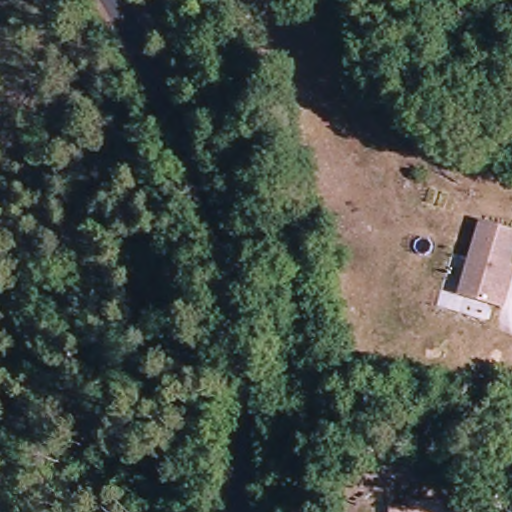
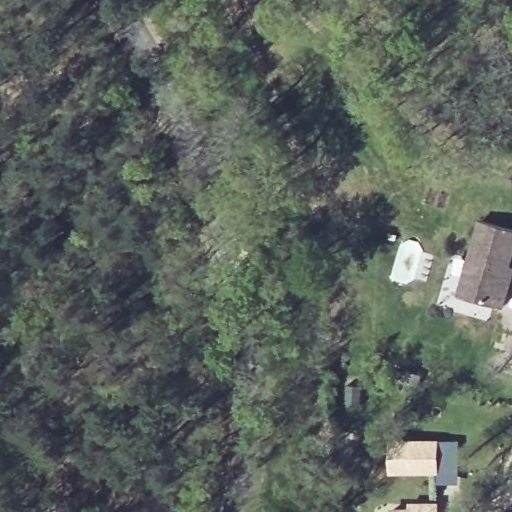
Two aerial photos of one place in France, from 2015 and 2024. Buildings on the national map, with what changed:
unchanged [(509,286),(504,303),(462,290),(485,216),(512,224),(512,275),(509,286)]
new [(438,484),(439,475),(391,476),(390,440),(461,442),(460,484),(438,484)]
unchanged [(440,507),(439,512),(412,512),(412,507),(440,507)]

